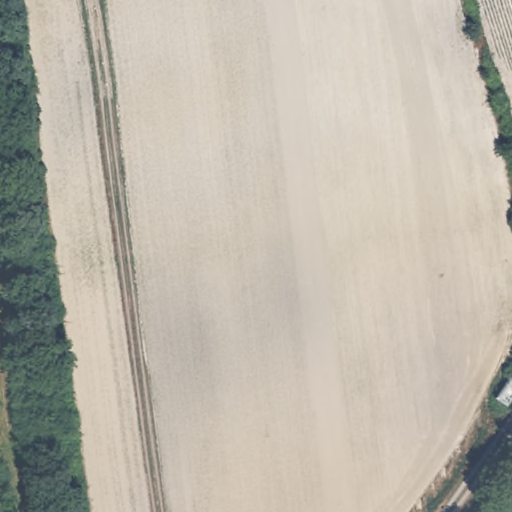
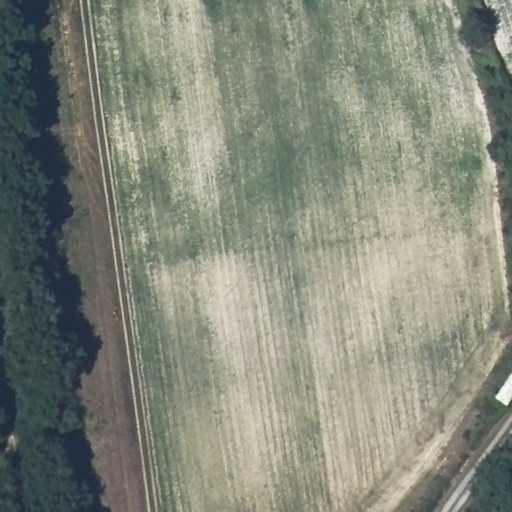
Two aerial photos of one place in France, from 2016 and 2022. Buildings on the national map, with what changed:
unchanged [(512,394),(505,402),(495,395),(512,370),(512,394)]

